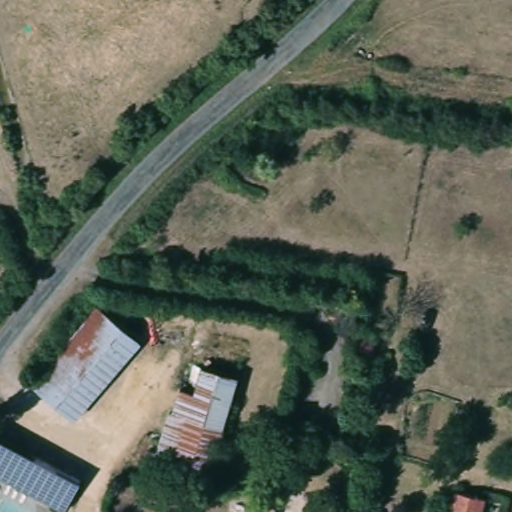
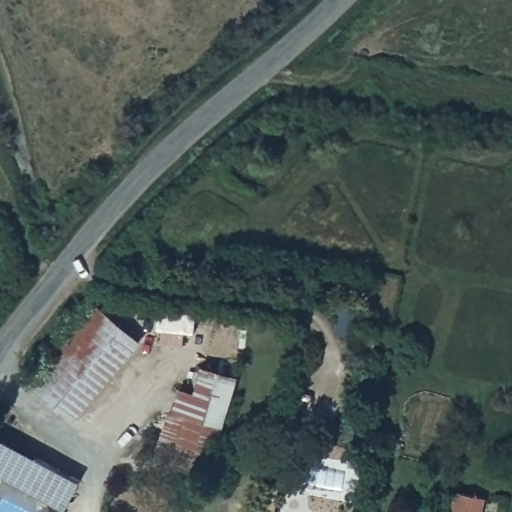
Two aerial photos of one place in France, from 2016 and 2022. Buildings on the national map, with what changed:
unchanged [(117,321),(138,335),(75,416),(44,393),(99,318),(104,311),(117,321)]
unchanged [(169,411),(179,413),(184,415),(194,365),(227,373),(215,433),(207,471),(203,470),(168,463),(157,460),(169,411)]
unchanged [(77,480),(62,508),(0,473),(0,437),(77,480)]
unchanged [(265,487),(279,490),(277,512),(261,512),(264,495),(265,487)]
unchanged [(484,500),(482,512),(451,512),(455,495),(460,496),(484,500)]

